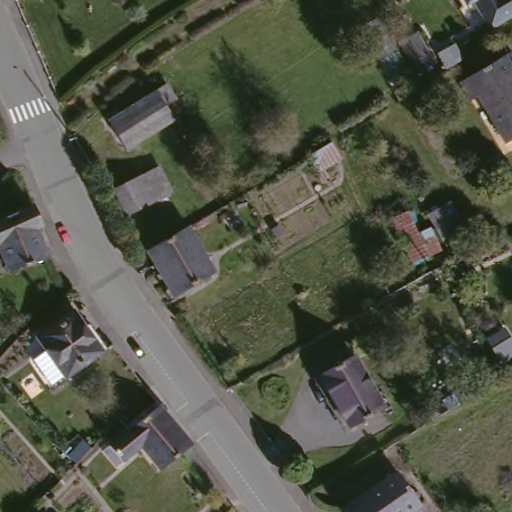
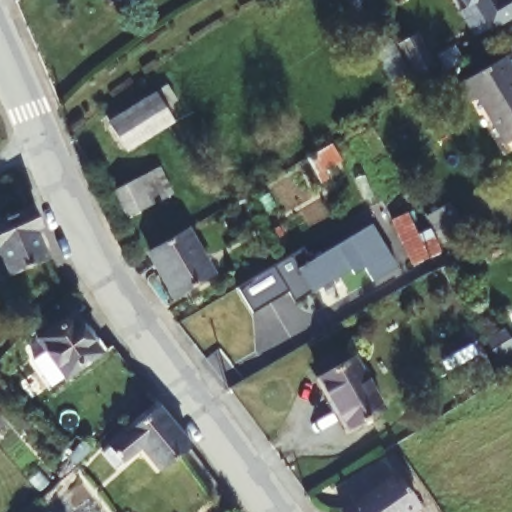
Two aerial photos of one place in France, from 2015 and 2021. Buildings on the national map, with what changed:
unchanged [(474,3),(472,0),(478,0),(474,3)]
unchanged [(496,27),(480,0),(512,0),(512,17),(496,27)]
unchanged [(429,67),(412,77),(394,47),(411,37),(429,67)]
unchanged [(508,136),(480,92),(472,96),(461,77),(507,48),(512,56),(512,133),(508,136)]
unchanged [(434,57),(450,49),(457,62),(442,71),(434,57)]
unchanged [(173,80),(182,95),(170,102),(179,116),(133,146),(115,117),(161,87),(173,80)]
unchanged [(164,195),(141,209),(126,184),(149,171),(164,195)]
unchanged [(41,226),(52,253),(14,269),(0,234),(0,218),(35,203),(39,202),(48,223),(41,226)]
unchanged [(447,209),(455,223),(434,235),(425,220),(447,209)]
unchanged [(391,219),(405,212),(416,234),(427,229),(438,251),(413,263),(391,219)]
new [(287,295),(285,290),(249,311),(234,287),(272,265),(275,263),(278,261),(292,252),(301,247),(309,260),(369,224),(394,266),(369,280),(361,267),(350,273),(347,268),(299,297),(291,301),(287,295)]
unchanged [(212,273),(175,295),(150,251),(187,229),(212,273)]
unchanged [(90,328),(95,325),(112,349),(71,378),(69,376),(58,384),(39,358),(51,350),(42,337),(78,312),(90,328)]
unchanged [(383,407),(349,427),(319,377),(354,356),(383,407)]
unchanged [(109,447),(115,442),(164,400),(195,439),(191,443),(165,465),(146,442),(126,457),(120,462),(109,447)]
unchanged [(409,512),(353,512),(348,504),(402,468),(424,502),(409,512)]

